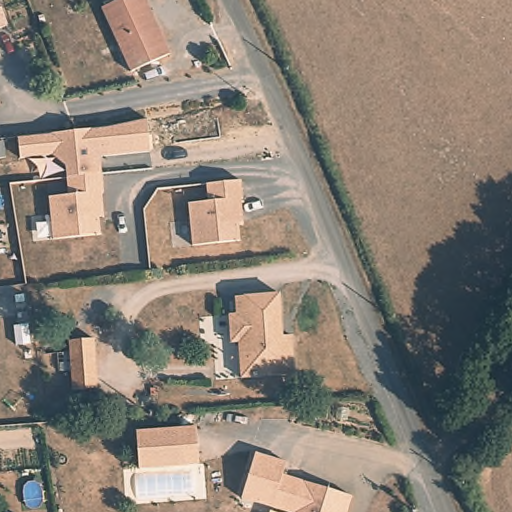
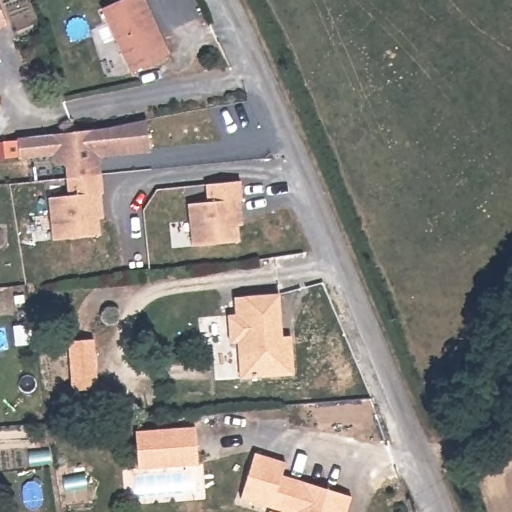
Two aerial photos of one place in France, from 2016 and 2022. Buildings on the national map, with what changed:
unchanged [(131,73),(97,11),(118,0),(143,0),(171,54),(131,73)]
unchanged [(0,30),(0,3),(7,28),(0,30)]
unchanged [(146,124),(149,155),(99,161),(106,221),(101,222),(103,234),(51,239),(47,197),(67,194),(64,166),(55,166),(54,154),(16,157),(13,136),(146,124)]
unchanged [(238,180),(242,226),(237,227),(238,241),(192,246),(187,202),(204,200),(202,182),(238,180)]
unchanged [(237,314),(244,313),(242,288),(288,287),(292,319),(237,326),(237,314)]
unchanged [(247,341),(238,340),(237,326),(292,319),(292,331),(301,331),(302,359),(302,371),(249,374),(249,365),(247,341)]
unchanged [(80,347),(79,336),(104,333),(104,343),(105,378),(105,383),(82,386),(81,380),(80,347)]
unchanged [(140,432),(200,427),(202,465),(142,469),(140,432)]
unchanged [(287,463),(283,475),(352,497),(347,512),(267,512),(268,508),(239,497),(252,453),(287,463)]

